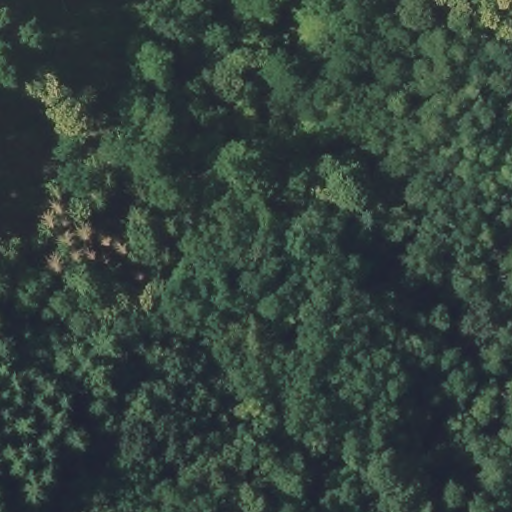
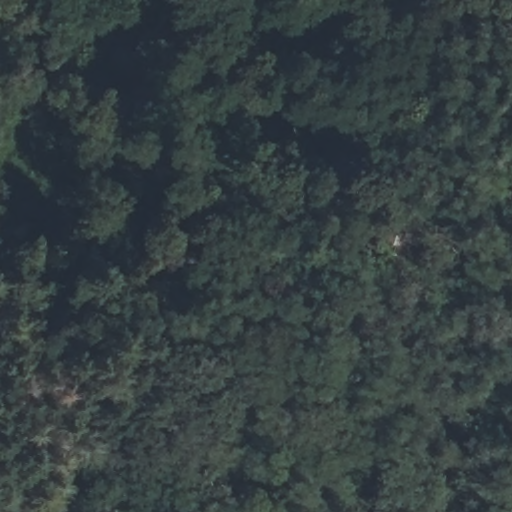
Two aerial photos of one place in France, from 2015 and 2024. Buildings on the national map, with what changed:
unchanged [(371,216),(400,226),(392,254),(362,245),(371,216)]

